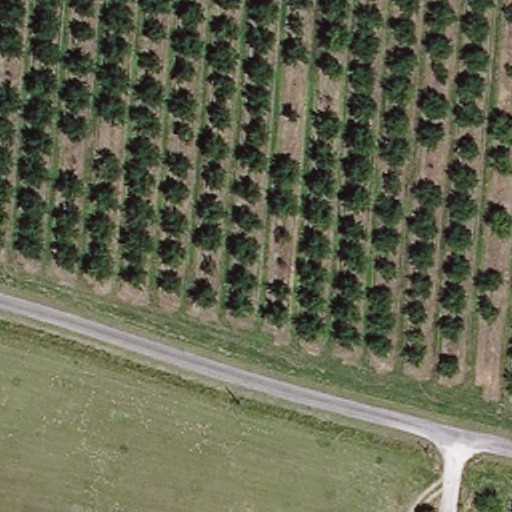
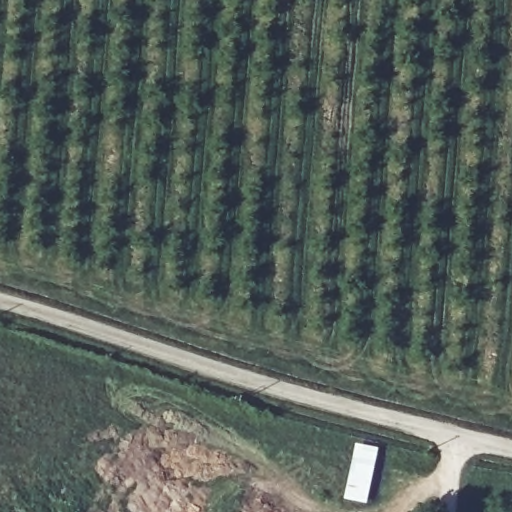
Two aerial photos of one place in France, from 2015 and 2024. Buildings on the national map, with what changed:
new [(366,505),(343,501),(355,445),(377,450),(366,505)]

